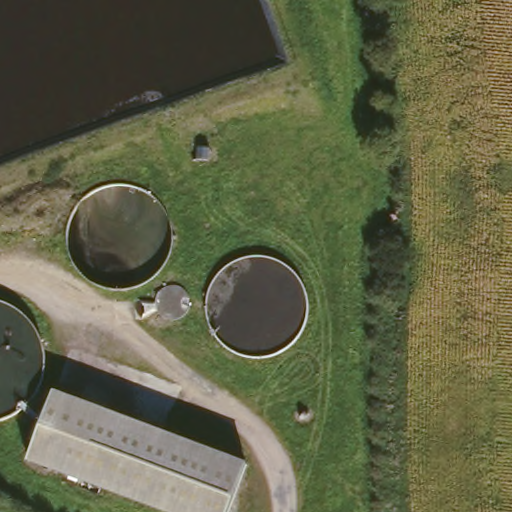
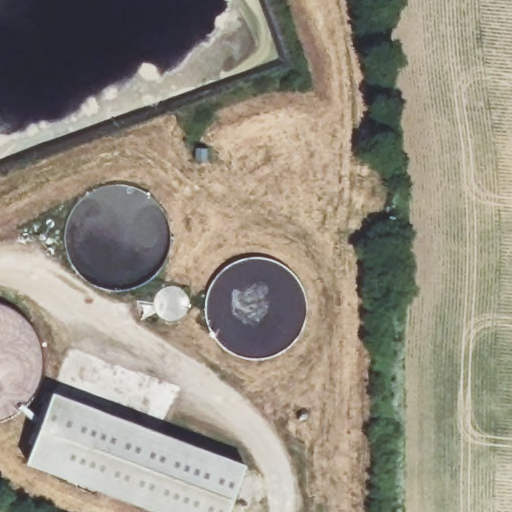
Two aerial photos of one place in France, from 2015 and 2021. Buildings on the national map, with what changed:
unchanged [(46,387),(242,465),(224,512),(157,512),(20,460),(46,387)]

